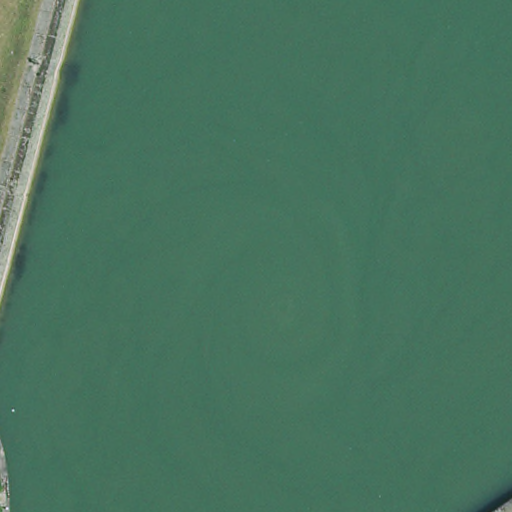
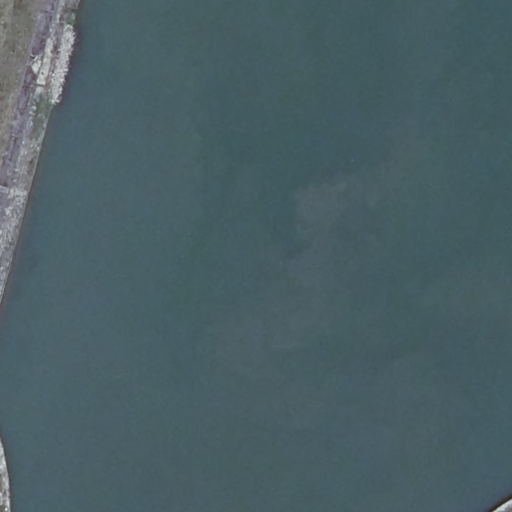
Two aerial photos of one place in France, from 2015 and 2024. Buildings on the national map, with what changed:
unchanged [(2,512),(5,511),(5,512),(2,512)]

